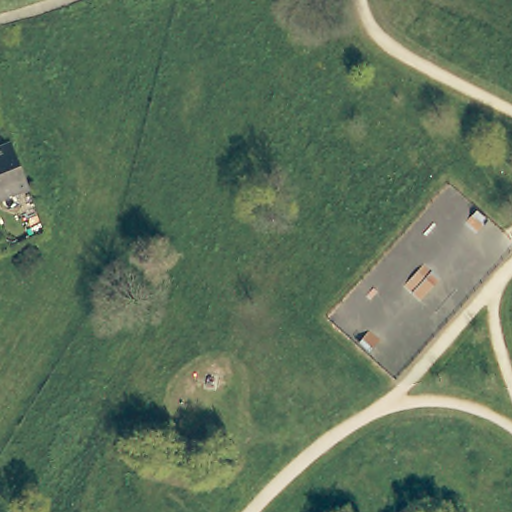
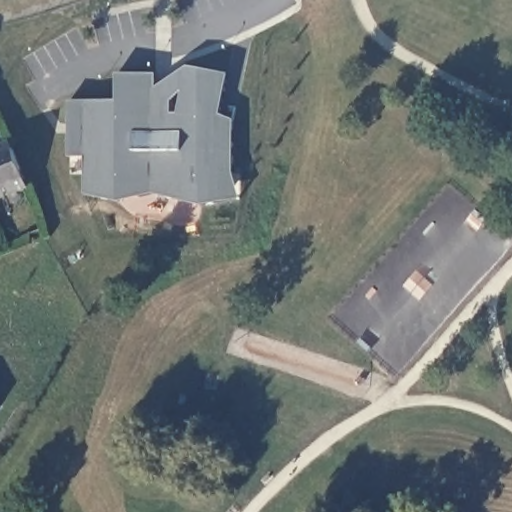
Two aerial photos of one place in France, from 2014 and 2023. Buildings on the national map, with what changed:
new [(150,194),(137,197),(117,202),(82,195),(82,157),(66,157),(66,101),(114,101),(114,74),(153,74),(153,88),(185,68),(185,67),(227,75),(219,116),(232,121),(232,133),(232,175),(240,200),(222,203),(199,207),(175,201),(150,194)]
unchanged [(26,188),(0,197),(0,145),(9,142),(26,188)]
new [(0,408),(0,405),(1,406),(0,408)]

